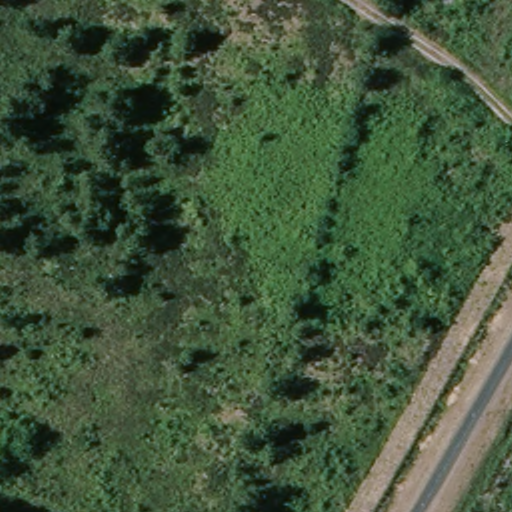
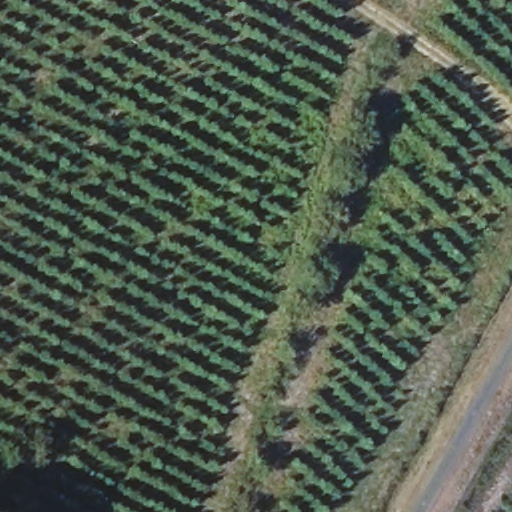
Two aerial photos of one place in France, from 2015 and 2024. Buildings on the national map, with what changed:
[]

